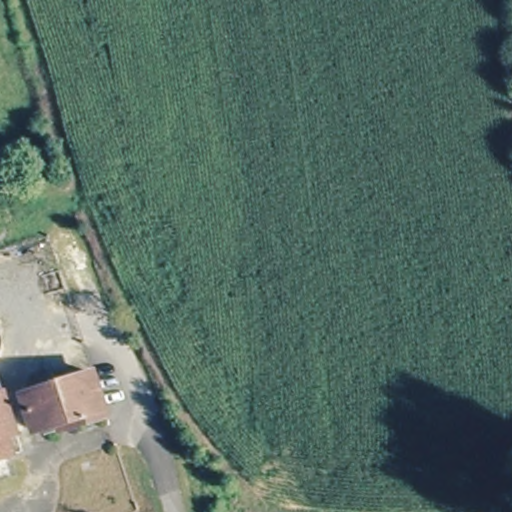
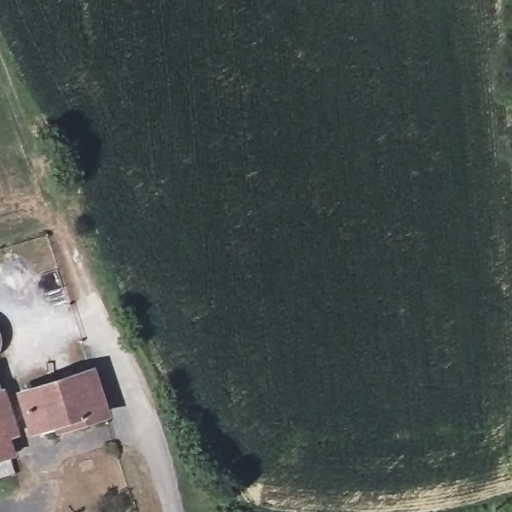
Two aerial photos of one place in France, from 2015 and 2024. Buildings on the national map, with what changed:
unchanged [(77,424),(72,416),(40,431),(26,396),(90,372),(104,414),(77,424)]
unchanged [(2,442),(5,449),(0,452),(0,398),(15,434),(2,442)]

